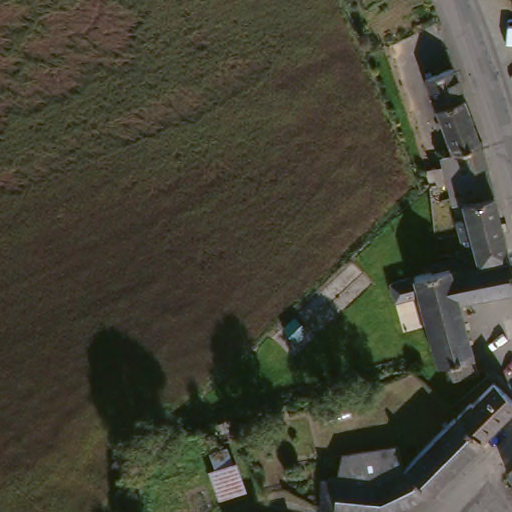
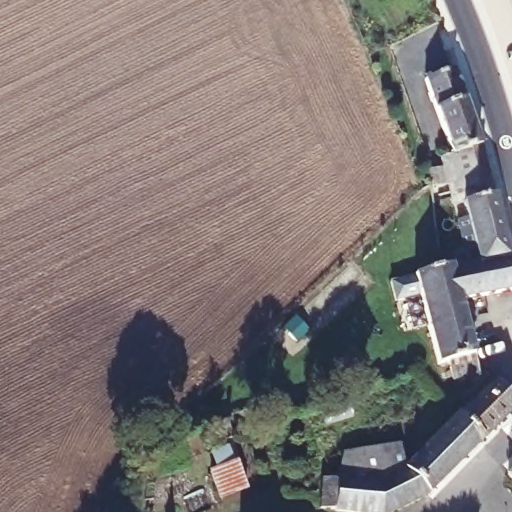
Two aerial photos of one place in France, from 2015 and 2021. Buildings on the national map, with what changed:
unchanged [(453,153),(436,105),(426,79),(453,66),(464,93),(478,125),(483,142),(489,169),(495,194),(509,248),(479,256),(476,245),(466,203),(461,179),(453,153)]
unchanged [(471,349),(443,359),(440,354),(424,295),(423,295),(400,302),(395,280),(426,271),(423,259),(434,256),(437,269),(479,256),(509,248),(512,257),(512,285),(457,302),(471,349)]
unchanged [(316,310),(304,320),(292,307),(304,297),(316,310)]
unchanged [(512,381),(512,409),(489,429),(468,407),(504,373),(512,381)]
unchanged [(489,429),(434,483),(383,512),(321,509),(322,479),(338,479),(376,479),(404,467),(468,407),(489,429)]
unchanged [(341,457),(396,444),(404,467),(376,479),(338,479),(341,457)]
unchanged [(237,456),(246,488),(220,495),(211,464),(237,456)]
unchanged [(512,467),(512,471),(510,468),(512,467)]

